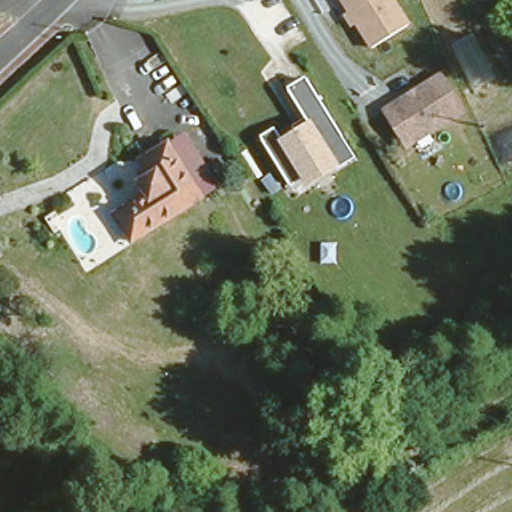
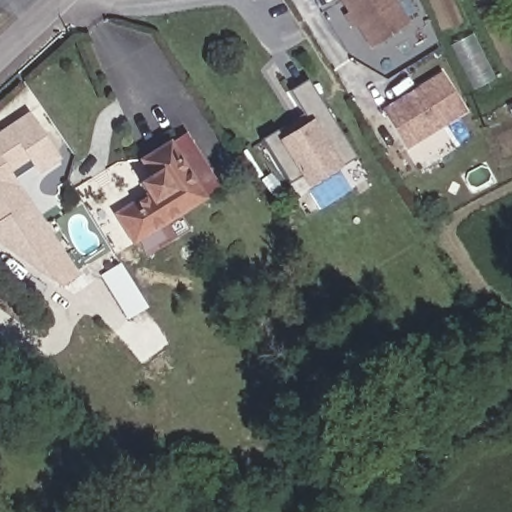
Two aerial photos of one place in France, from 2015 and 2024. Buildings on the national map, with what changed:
unchanged [(340,0),(396,0),(411,23),(371,50),(340,0)]
unchanged [(405,149),(378,107),(437,70),(463,107),(405,149)]
unchanged [(311,188),(303,179),(291,187),(259,137),(274,129),(285,139),(295,133),(293,127),(308,117),(289,89),(309,76),(357,159),(311,188)]
new [(56,290),(46,275),(43,277),(0,248),(0,130),(28,111),(60,160),(36,176),(28,162),(10,174),(78,275),(56,290)]
unchanged [(114,210),(133,200),(115,170),(171,137),(210,192),(130,240),(114,210)]
new [(99,276),(119,264),(146,308),(126,320),(99,276)]

